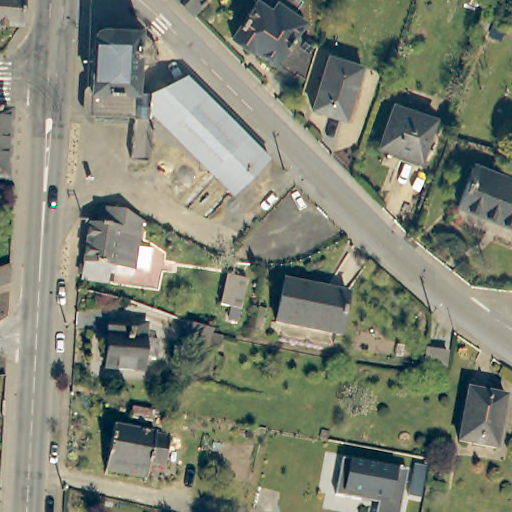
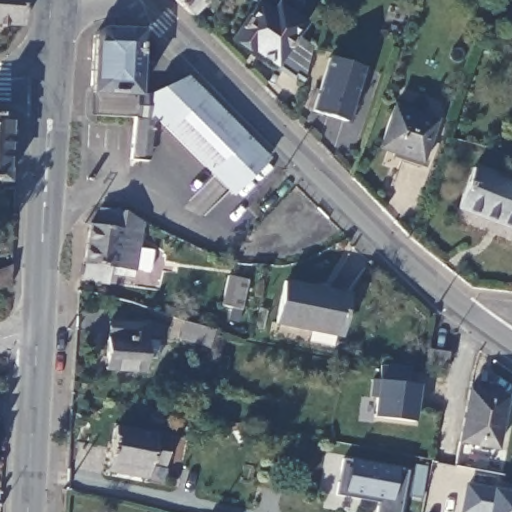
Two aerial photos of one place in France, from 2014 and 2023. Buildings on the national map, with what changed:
unchanged [(0,0),(29,0),(27,27),(0,25),(0,0)]
unchanged [(168,0),(217,0),(196,25),(168,0)]
unchanged [(296,38),(312,50),(303,83),(297,79),(295,82),(253,51),(252,53),(231,40),(255,4),(252,0),(298,0),(303,4),(293,17),(305,26),(296,38)]
unchanged [(154,67),(139,66),(137,95),(90,94),(94,36),(100,30),(141,31),(157,47),(154,67)]
unchanged [(360,70),(345,120),(314,110),(329,60),(360,70)]
unchanged [(134,160),(131,160),(134,136),(135,117),(90,114),(90,94),(137,95),(150,95),(186,77),(268,159),(233,193),(155,116),(150,110),(150,118),(153,120),(149,161),(134,160)]
unchanged [(433,120),(418,162),(380,149),(393,107),(433,120)]
unchanged [(6,182),(0,182),(0,113),(9,114),(6,182)]
unchanged [(512,184),(512,228),(458,207),(473,168),(512,184)]
unchanged [(155,249),(152,266),(140,265),(139,273),(114,270),(111,280),(87,276),(92,222),(99,223),(102,203),(130,207),(147,218),(144,230),(142,247),(155,249)]
unchanged [(10,291),(0,294),(0,275),(11,272),(10,291)]
unchanged [(243,311),(224,307),(231,277),(250,282),(243,311)]
unchanged [(341,337),(277,325),(284,282),(349,295),(341,337)]
unchanged [(146,341),(158,342),(157,357),(145,357),(144,371),(106,368),(111,321),(147,324),(146,341)]
unchanged [(208,348),(179,340),(184,321),(212,330),(214,330),(208,348)]
unchanged [(444,368),(426,364),(429,350),(446,355),(444,368)]
new [(377,381),(380,365),(410,368),(407,383),(421,384),(415,423),(372,417),(377,381)]
unchanged [(495,450),(460,442),(468,392),(506,399),(495,450)]
unchanged [(165,466),(150,463),(147,478),(107,470),(116,428),(170,439),(165,466)]
unchanged [(337,496),(343,458),(407,469),(400,512),(378,512),(380,504),(337,496)]
unchanged [(419,504),(407,502),(412,479),(423,481),(419,504)]
new [(512,495),(512,512),(462,512),(467,487),(512,495)]

